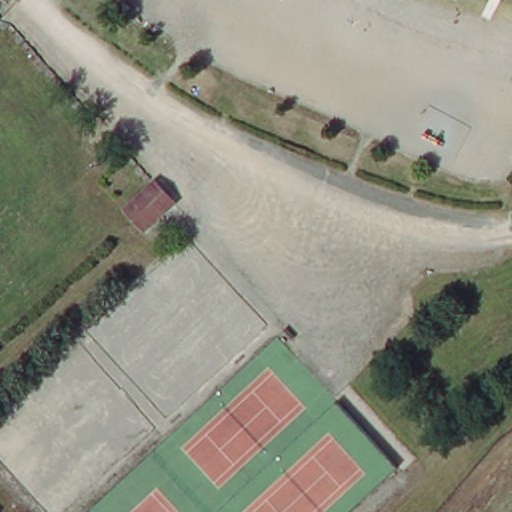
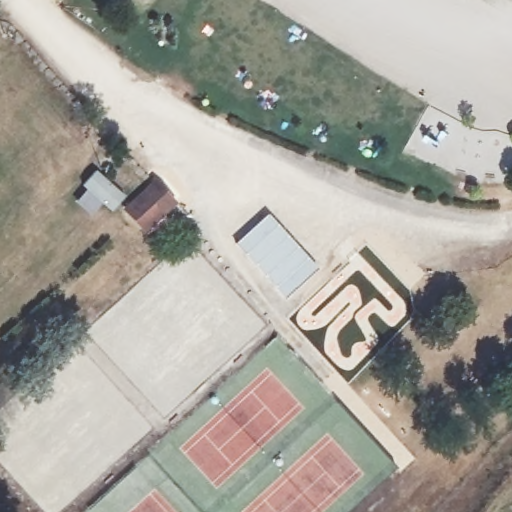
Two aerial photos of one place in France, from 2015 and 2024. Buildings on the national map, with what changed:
unchanged [(180,198),(149,225),(131,205),(161,177),(180,198)]
new [(267,212),(317,267),(284,297),(235,243),(267,212)]

